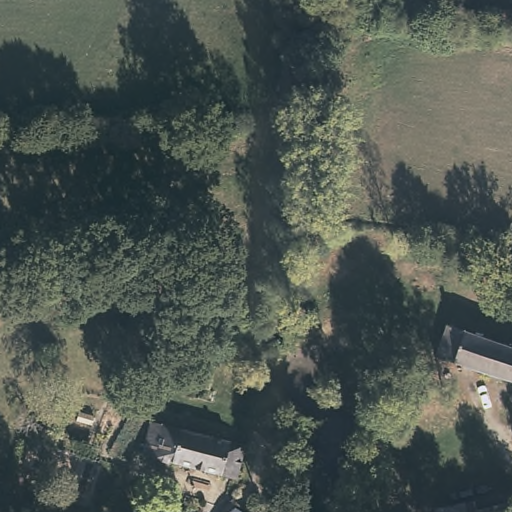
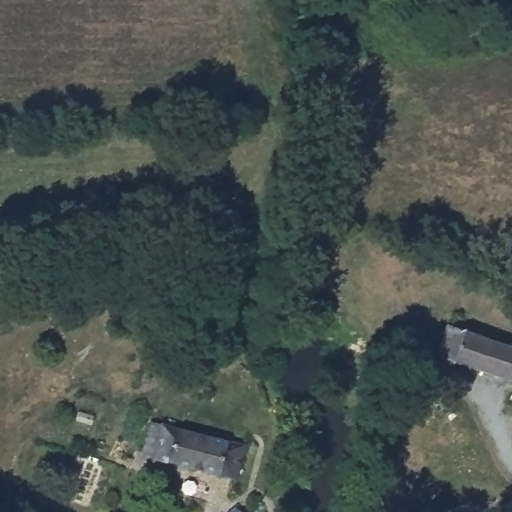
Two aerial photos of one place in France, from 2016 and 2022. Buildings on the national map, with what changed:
unchanged [(512,345),(512,378),(439,354),(449,324),(512,345)]
unchanged [(233,442),(224,474),(145,452),(156,419),(233,442)]
unchanged [(472,512),(434,512),(434,507),(470,500),(472,512)]

